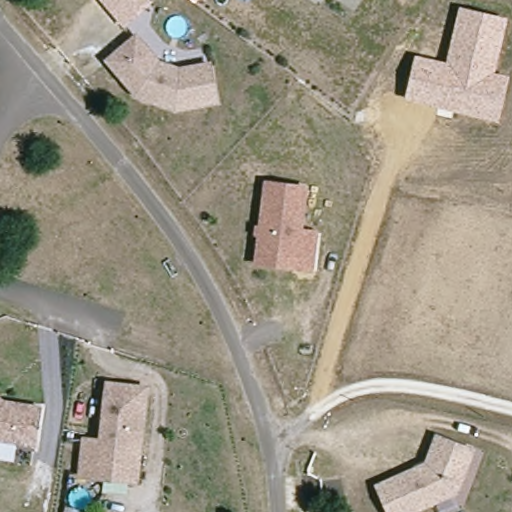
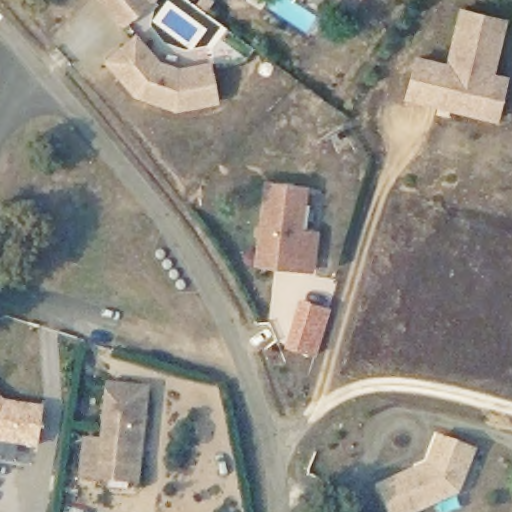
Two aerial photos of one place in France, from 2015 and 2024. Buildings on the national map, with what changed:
unchanged [(148,3),(123,24),(103,0),(146,0),(148,3)]
unchanged [(446,62),(459,6),(507,18),(495,74),(509,77),(497,122),(404,100),(414,56),(446,62)]
unchanged [(106,62),(120,49),(134,37),(144,49),(156,64),(177,71),(208,65),(215,102),(175,110),(135,96),(132,92),(122,80),(106,62)]
unchanged [(256,255),(265,184),(304,189),(299,232),(315,234),(310,271),(293,269),(255,264),(256,255)]
new [(315,357),(284,347),(298,298),(330,307),(315,357)]
unchanged [(95,478),(78,476),(80,455),(81,436),(99,437),(97,457),(104,386),(144,390),(135,468),(134,482),(95,478)]
unchanged [(0,441),(0,402),(1,403),(39,408),(33,446),(0,441)]
unchanged [(388,512),(376,487),(426,465),(436,437),(456,446),(471,451),(466,464),(455,492),(412,512),(388,512)]

